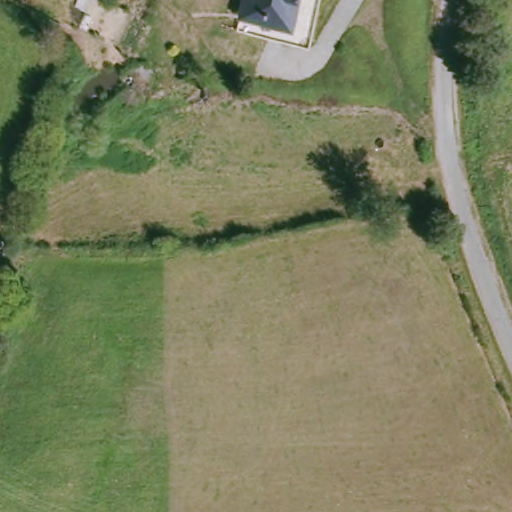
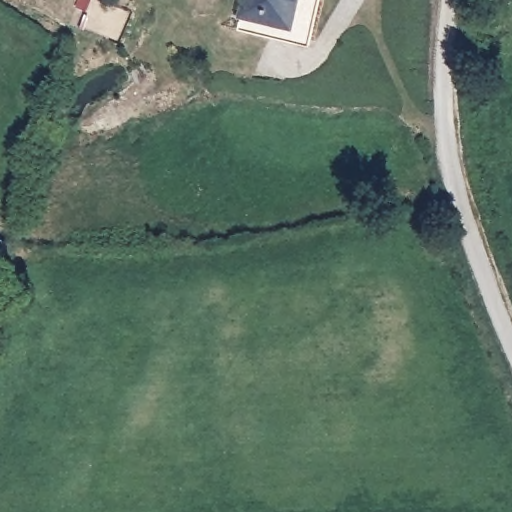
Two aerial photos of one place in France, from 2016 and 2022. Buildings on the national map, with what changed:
unchanged [(233,15),(236,0),(311,0),(304,33),(233,15)]

